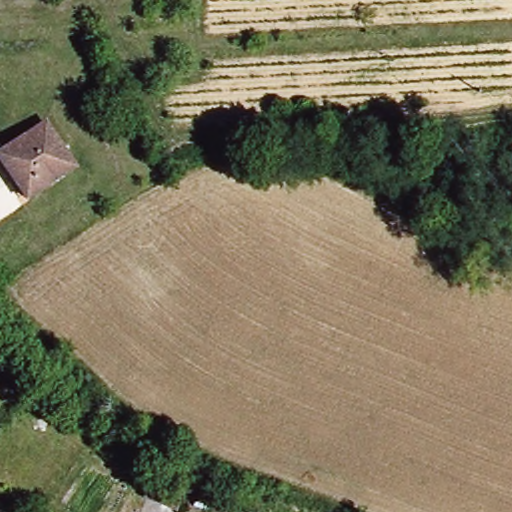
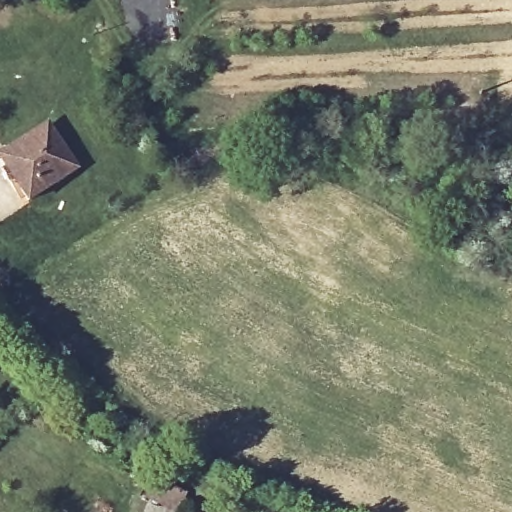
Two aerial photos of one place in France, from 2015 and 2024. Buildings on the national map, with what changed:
unchanged [(0,150),(46,120),(77,165),(26,199),(14,179),(6,184),(0,174),(0,150)]
unchanged [(192,479),(184,498),(154,484),(162,465),(192,479)]

